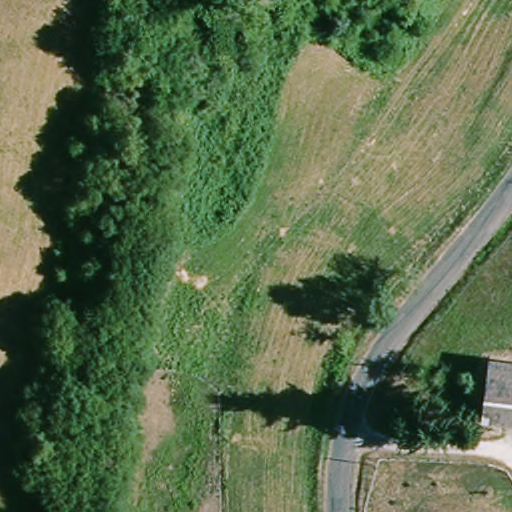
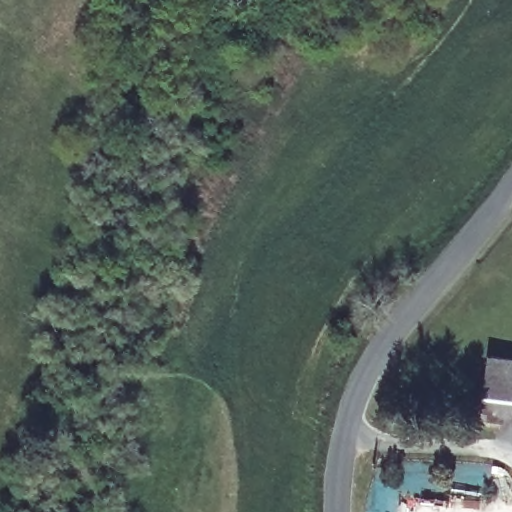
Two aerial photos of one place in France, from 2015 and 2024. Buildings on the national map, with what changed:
unchanged [(512,365),(512,428),(480,424),(487,362),(512,365)]

